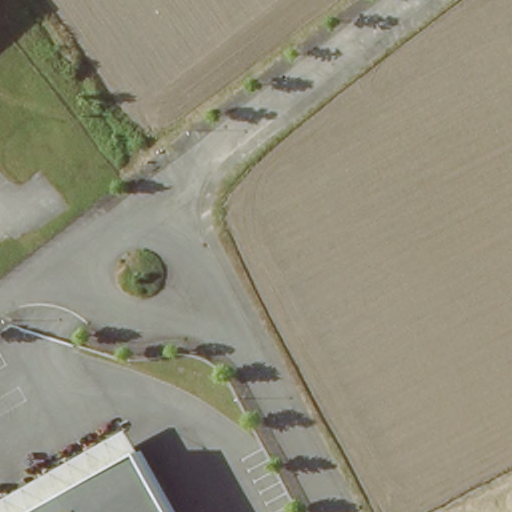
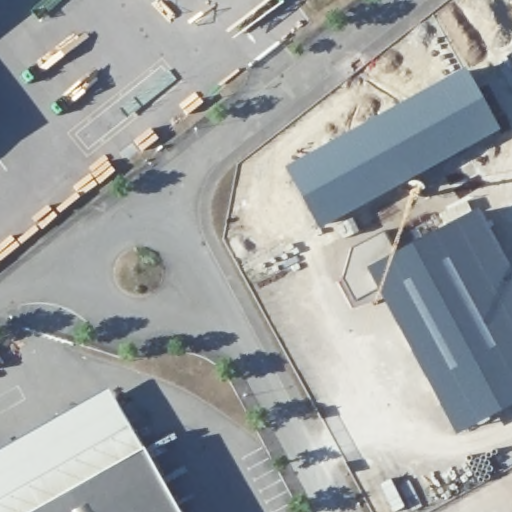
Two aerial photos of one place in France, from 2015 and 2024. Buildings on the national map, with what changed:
new [(464,67),(500,129),(349,214),(319,229),(284,167),(464,67)]
new [(383,300),(354,310),(339,282),(343,280),(352,248),(383,232),(396,254),(440,230),(434,219),(460,204),(469,215),(479,210),(512,271),(512,406),(456,435),(383,300)]
new [(0,450),(108,391),(122,426),(0,497),(0,450)]
unchanged [(0,497),(122,426),(138,451),(172,512),(0,512),(0,497)]

